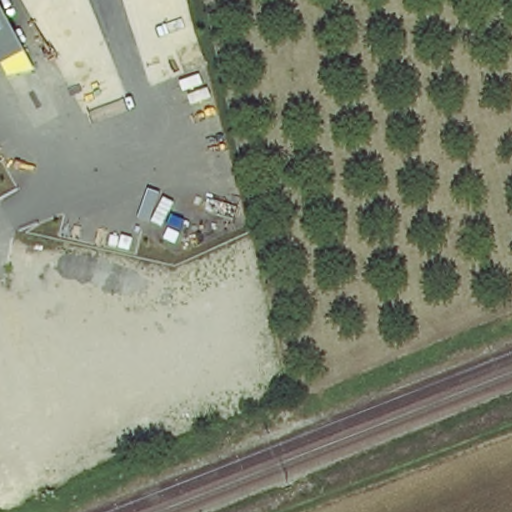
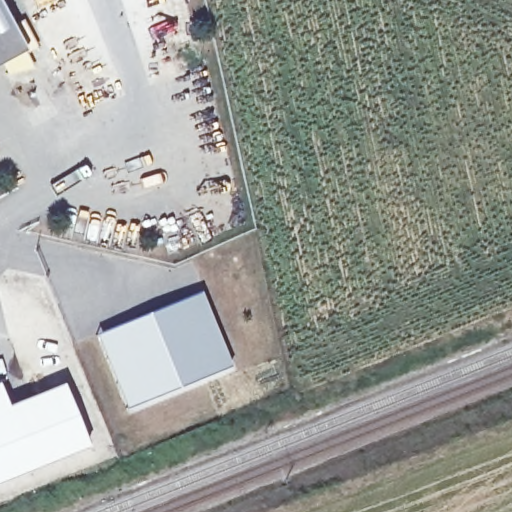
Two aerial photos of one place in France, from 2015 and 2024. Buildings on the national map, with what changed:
unchanged [(8,76),(2,66),(0,67),(0,8),(35,71),(8,76)]
new [(200,299),(229,370),(125,411),(99,339),(200,299)]
new [(87,449),(0,483),(0,392),(7,408),(61,385),(87,449)]

